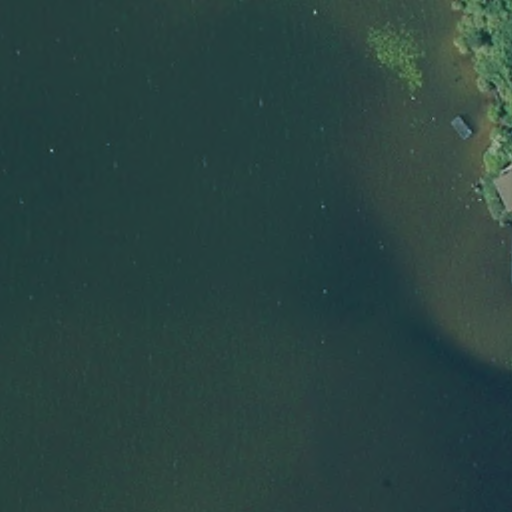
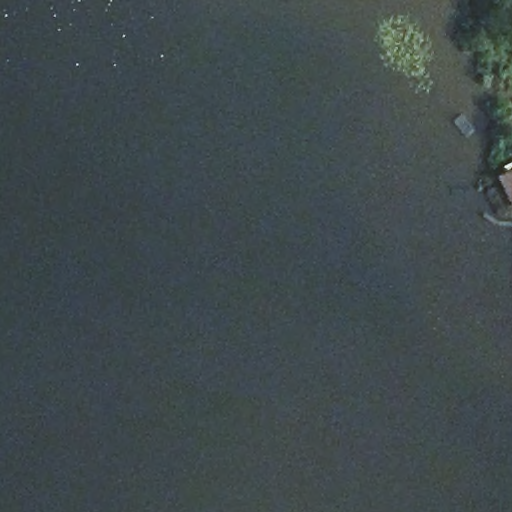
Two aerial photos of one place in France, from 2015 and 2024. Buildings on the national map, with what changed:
unchanged [(490,173),(512,162),(512,201),(505,204),(490,173)]

